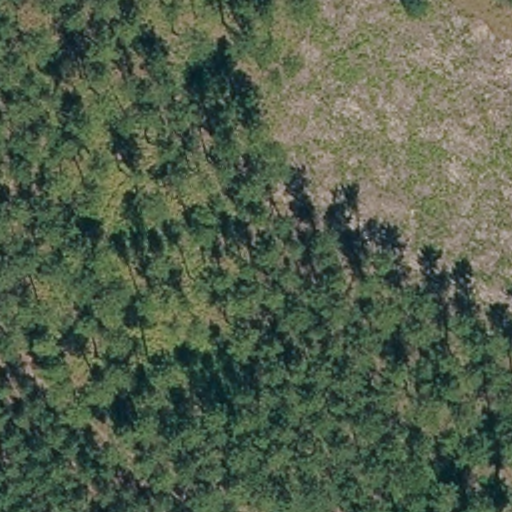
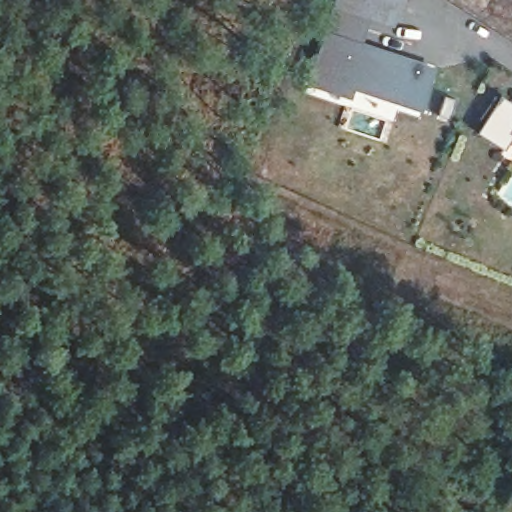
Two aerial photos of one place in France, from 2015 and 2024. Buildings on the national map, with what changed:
new [(395,26),(371,19),(364,42),(435,67),(422,110),(355,88),(352,98),(306,86),(332,0),(403,0),(395,26)]
new [(512,101),(512,137),(503,147),(477,131),(501,95),(512,101)]

